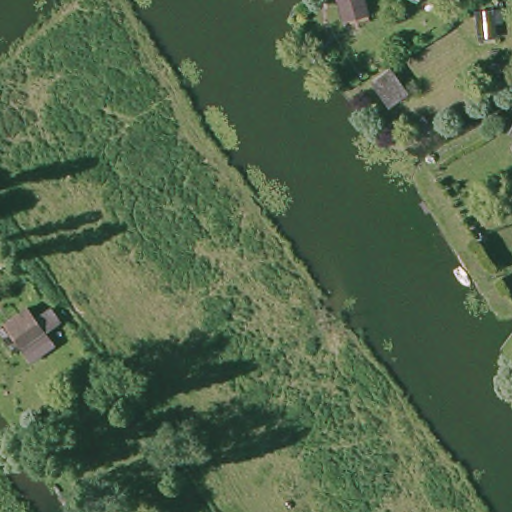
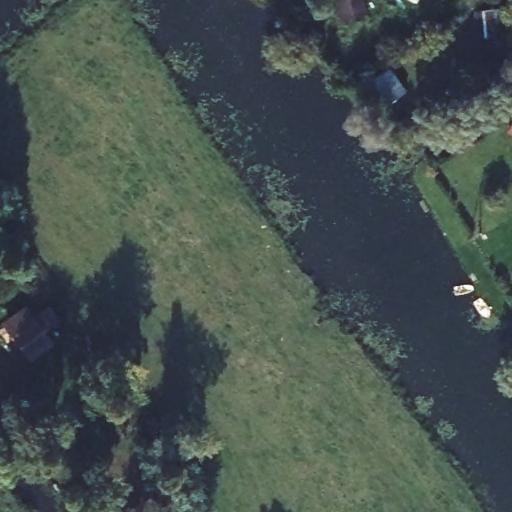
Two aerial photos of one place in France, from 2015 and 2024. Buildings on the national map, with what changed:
unchanged [(348,30),(343,0),(375,0),(380,25),(348,30)]
unchanged [(497,11),(497,26),(490,26),(491,39),(471,40),(471,13),(497,11)]
unchanged [(401,93),(386,107),(367,85),(384,71),(401,93)]
unchanged [(42,335),(21,352),(2,324),(24,308),(42,335)]

